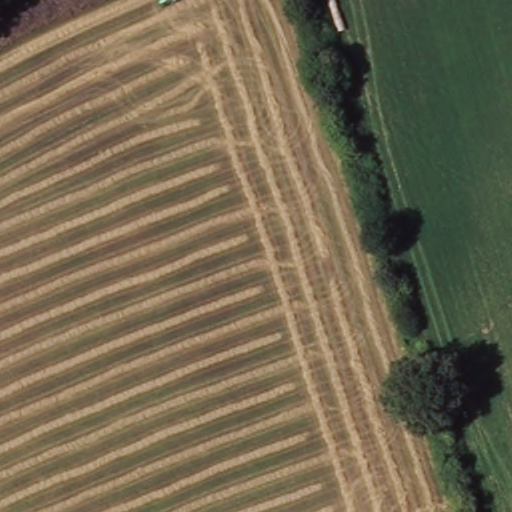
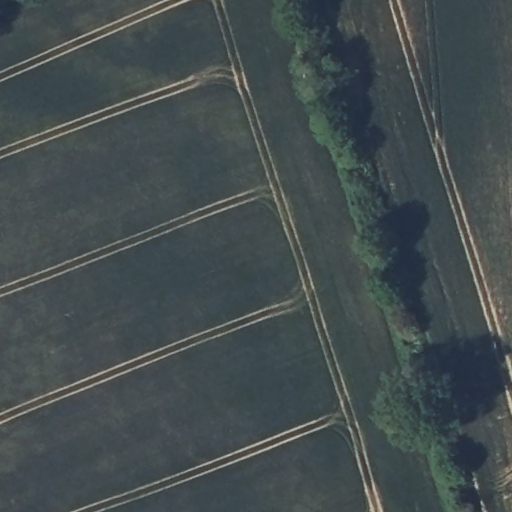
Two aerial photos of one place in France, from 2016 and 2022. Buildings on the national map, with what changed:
[]

